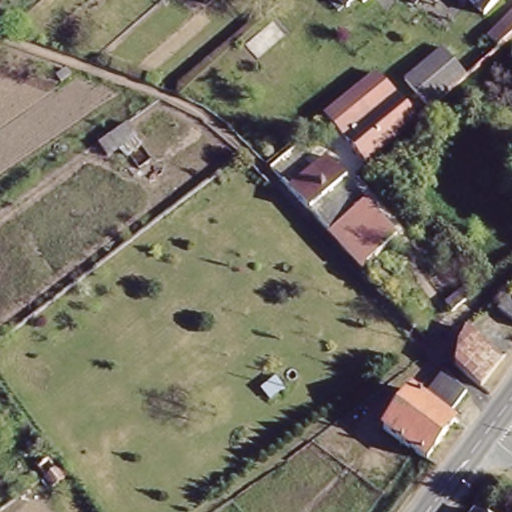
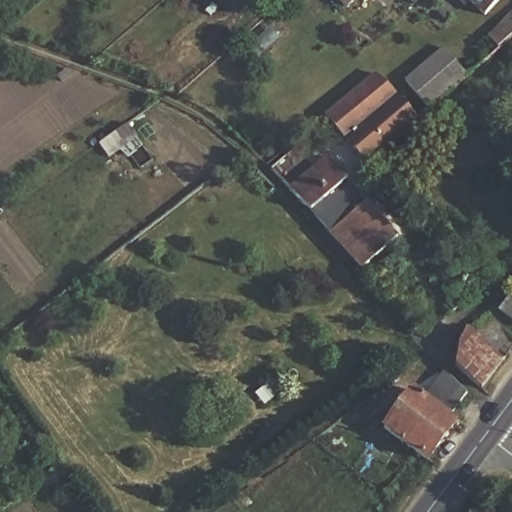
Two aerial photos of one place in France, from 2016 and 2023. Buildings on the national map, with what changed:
unchanged [(336,0),(359,0),(346,11),(336,0)]
unchanged [(470,1),(463,8),(455,0),(501,0),(485,16),(470,1)]
unchanged [(490,41),(505,27),(512,35),(512,37),(497,49),(490,41)]
unchanged [(430,108),(396,70),(433,37),(466,76),(430,108)]
unchanged [(393,95),(413,118),(362,161),(322,115),(372,74),(393,95)]
unchanged [(318,122),(321,120),(324,121),(325,124),(325,127),(323,129),(320,129),(318,127),(317,124),(318,122)]
unchanged [(132,159),(124,148),(111,157),(102,145),(114,136),(130,124),(140,137),(147,147),(132,159)]
unchanged [(297,152),(308,165),(315,173),(327,163),(398,238),(362,272),(271,174),(297,152)]
unchanged [(477,388),(451,365),(453,347),(460,330),(463,326),(502,357),(477,388)]
unchanged [(381,428),(408,390),(421,399),(441,373),(462,395),(444,417),(452,424),(425,461),(412,452),(381,428)]
unchanged [(55,488),(48,480),(40,470),(51,462),(59,472),(65,480),(55,488)]
unchanged [(473,509),(477,512),(472,512),(473,509)]

